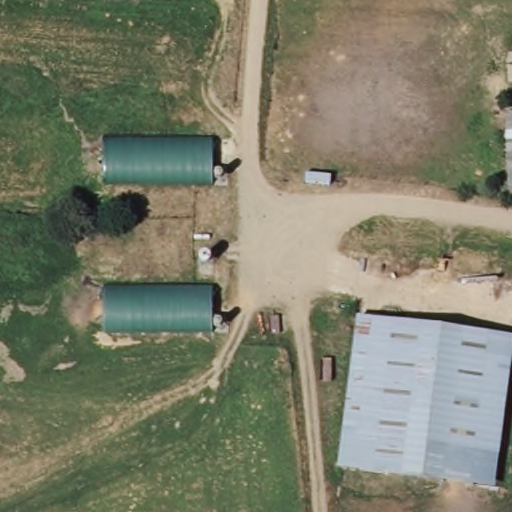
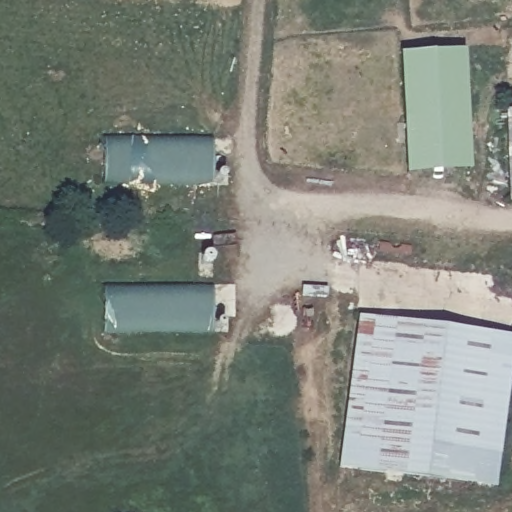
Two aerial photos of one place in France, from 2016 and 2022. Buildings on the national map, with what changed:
new [(407,174),(399,54),(464,51),(471,170),(407,174)]
unchanged [(504,111),(512,110),(512,208),(510,208),(504,111)]
unchanged [(103,140),(215,140),(213,188),(102,186),(103,140)]
unchanged [(101,337),(103,287),(213,287),(212,335),(101,337)]
unchanged [(386,319),(364,468),(336,466),(359,316),(386,319)]
unchanged [(364,468),(386,319),(512,337),(512,382),(497,484),(496,489),(482,487),(364,468)]

